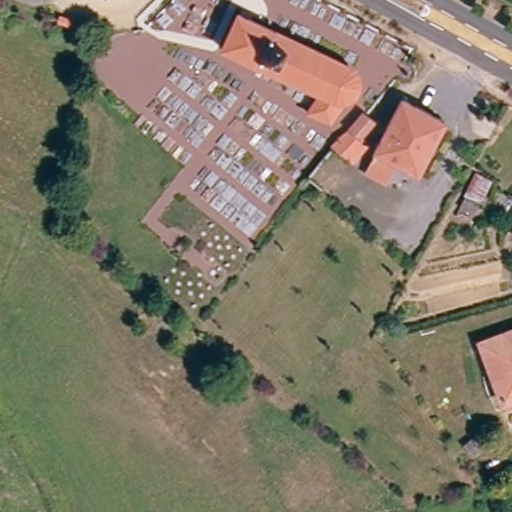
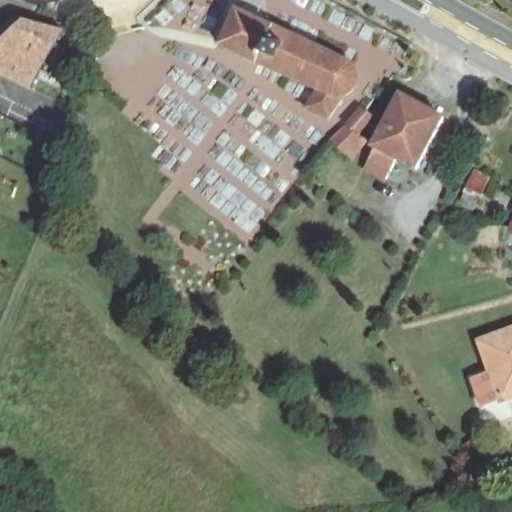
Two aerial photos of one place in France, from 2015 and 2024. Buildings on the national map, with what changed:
unchanged [(353,70),(356,80),(357,87),(353,94),(342,102),(333,109),(329,119),(312,112),(318,94),(228,48),(244,16),(353,70)]
new [(31,87),(0,74),(0,43),(29,19),(65,32),(31,87)]
unchanged [(452,117),(424,171),(408,162),(402,172),(378,157),(411,94),(452,117)]
unchanged [(349,125),(371,142),(352,164),(328,145),(349,125)]
unchanged [(484,342),(512,334),(512,401),(505,403),(484,342)]

